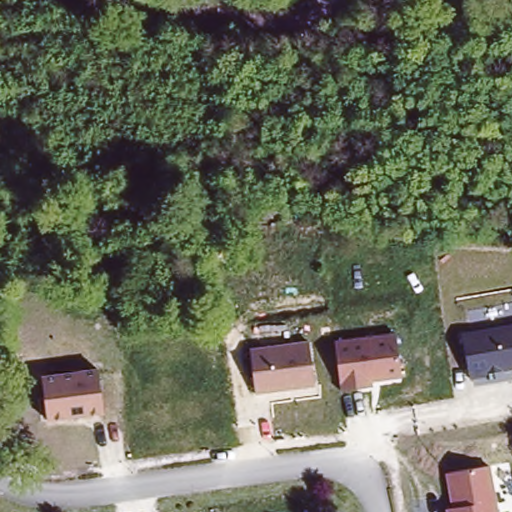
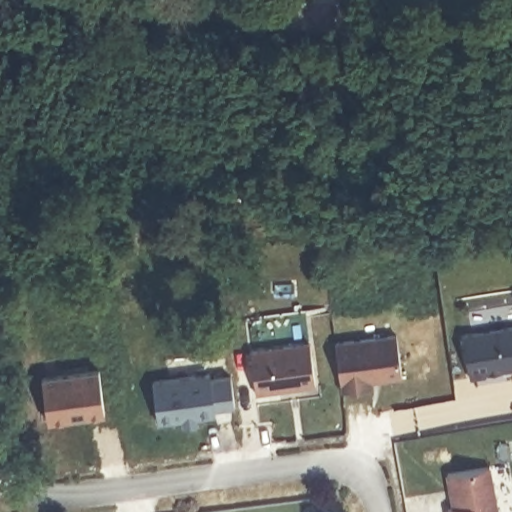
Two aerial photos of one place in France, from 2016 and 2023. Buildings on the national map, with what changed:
unchanged [(512,327),(512,373),(472,380),(463,336),(512,327)]
unchanged [(401,378),(374,382),(375,388),(343,392),(336,340),(394,332),(401,378)]
unchanged [(316,388),(256,394),(251,349),(309,341),(316,388)]
unchanged [(103,414),(47,423),(41,376),(96,368),(103,414)]
new [(210,370),(211,376),(231,373),(235,406),(216,409),(217,415),(199,417),(199,422),(182,425),(182,418),(159,421),(152,377),(210,370)]
unchanged [(500,512),(451,512),(446,473),(492,466),(492,465),(500,512)]

